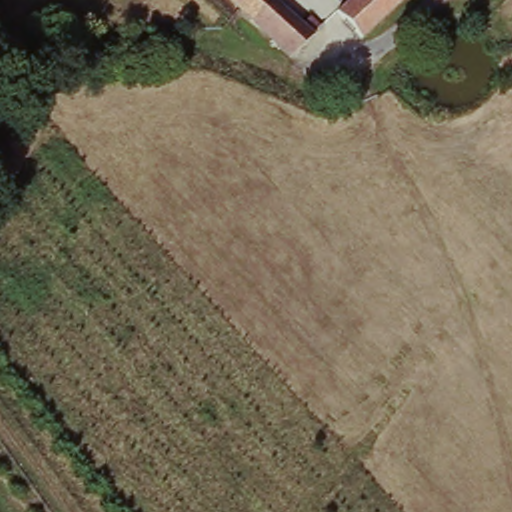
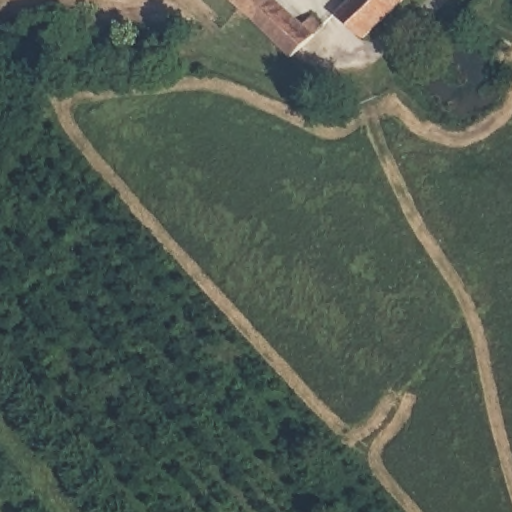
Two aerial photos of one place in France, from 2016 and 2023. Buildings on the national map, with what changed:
unchanged [(230,0),(270,0),(251,20),(230,0)]
unchanged [(270,0),(278,0),(314,34),(291,55),(251,20),(270,0)]
unchanged [(350,0),(407,0),(367,35),(342,7),(350,0)]

